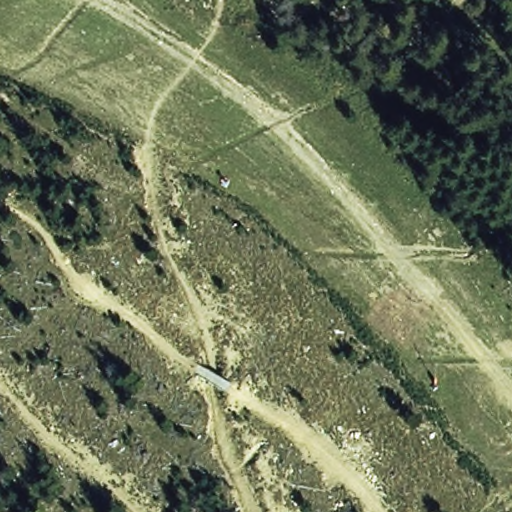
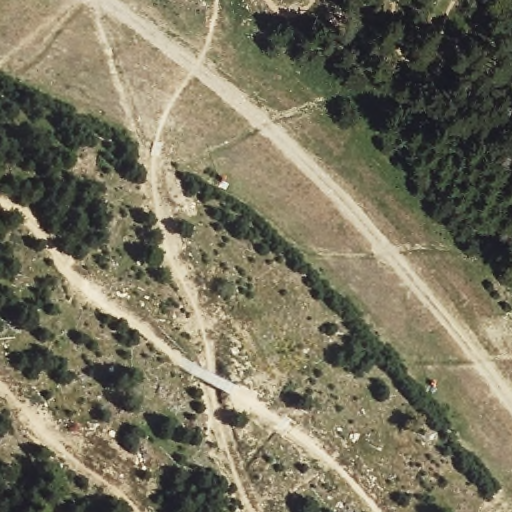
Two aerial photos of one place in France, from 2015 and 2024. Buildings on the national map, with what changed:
[]

